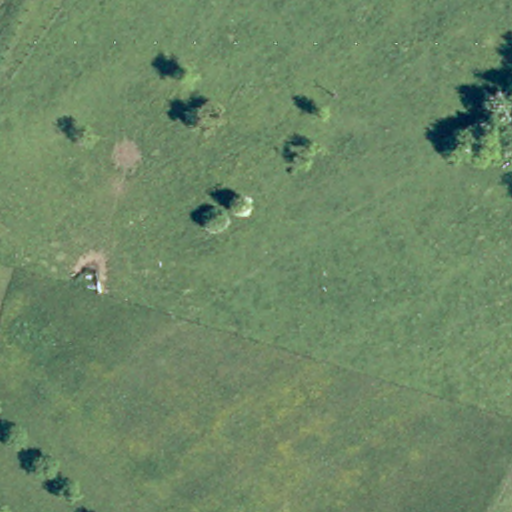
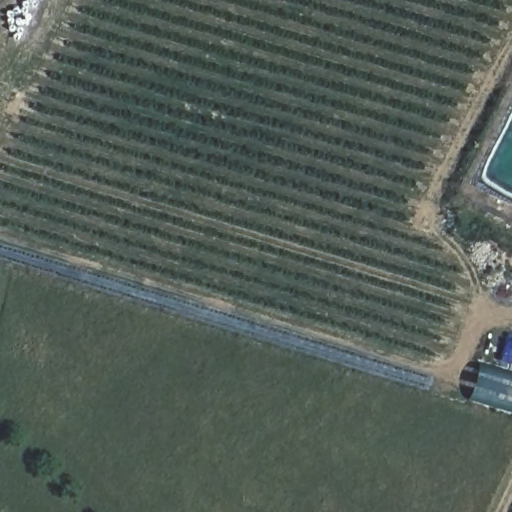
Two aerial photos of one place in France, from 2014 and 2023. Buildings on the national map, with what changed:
new [(512,376),(512,411),(466,397),(475,365),(512,376)]

